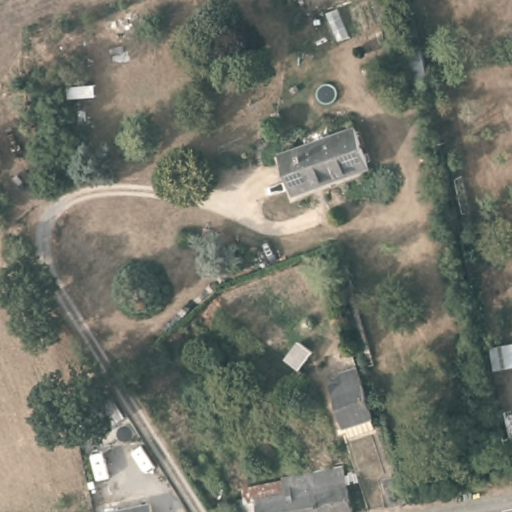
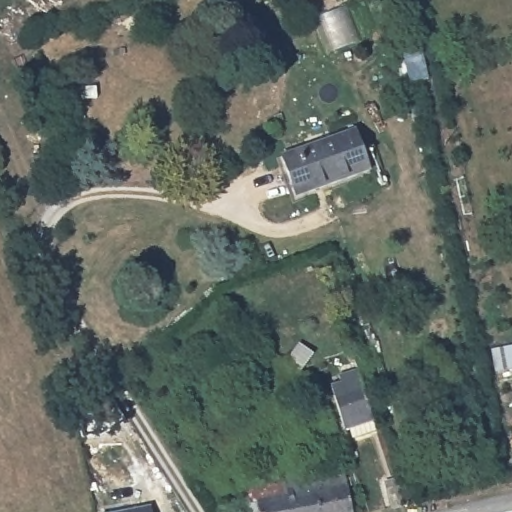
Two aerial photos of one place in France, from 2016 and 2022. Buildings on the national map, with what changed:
unchanged [(422,48),(430,85),(410,89),(400,51),(422,48)]
unchanged [(299,197),(283,156),(357,128),(372,170),(299,197)]
unchanged [(512,345),(512,373),(493,373),(487,348),(512,345)]
unchanged [(286,353),(307,370),(298,379),(278,363),(286,353)]
unchanged [(354,440),(350,427),(346,429),(333,384),(343,381),(340,373),(361,367),(380,431),(354,440)]
unchanged [(276,394),(298,379),(310,397),(288,412),(276,394)]
unchanged [(125,415),(91,433),(79,412),(112,393),(125,415)]
unchanged [(244,502),(242,490),(345,469),(354,512),(241,512),(239,502),(244,502)]
unchanged [(386,494),(400,490),(405,507),(391,510),(386,494)]
unchanged [(150,500),(153,512),(117,512),(116,507),(150,500)]
unchanged [(228,512),(217,512),(226,507),(228,512)]

